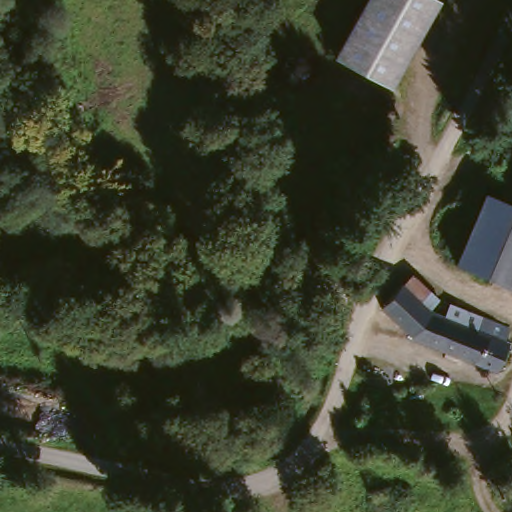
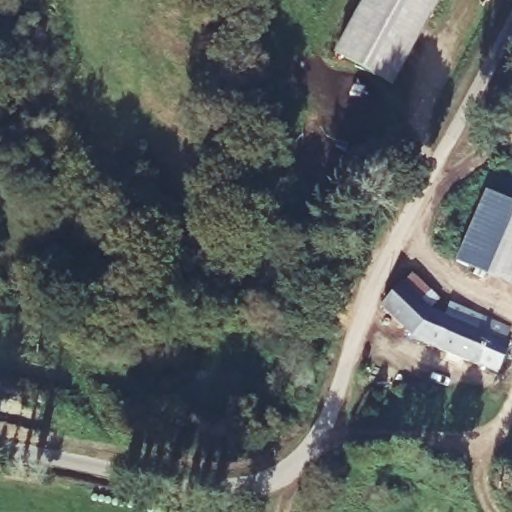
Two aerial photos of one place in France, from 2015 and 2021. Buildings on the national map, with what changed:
unchanged [(390,85),(333,54),(362,0),(436,0),(390,85)]
unchanged [(485,192),(512,205),(512,286),(455,262),(478,209),(485,192)]
unchanged [(399,272),(433,296),(424,309),(450,321),(456,308),(512,333),(512,348),(511,349),(504,376),(427,342),(376,311),(393,288),(399,272)]

